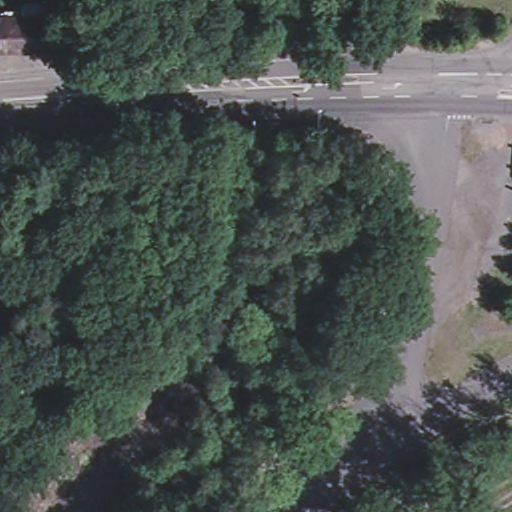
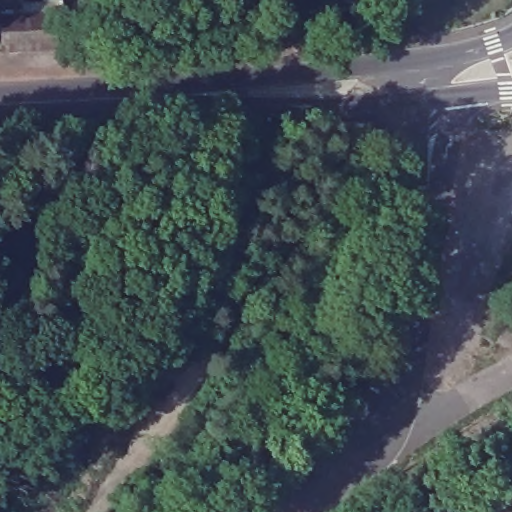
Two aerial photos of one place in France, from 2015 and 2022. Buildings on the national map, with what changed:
unchanged [(61,45),(5,46),(3,12),(60,11),(61,45)]

